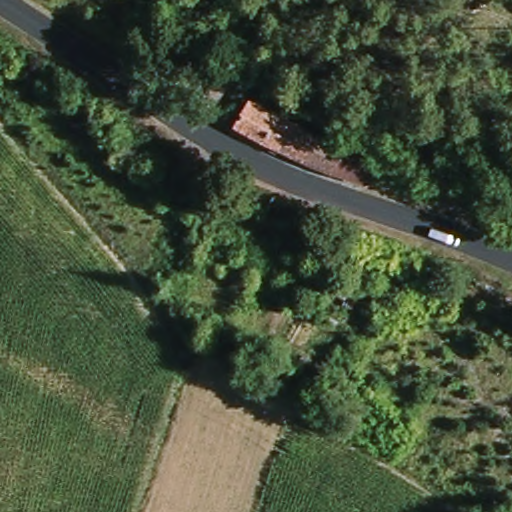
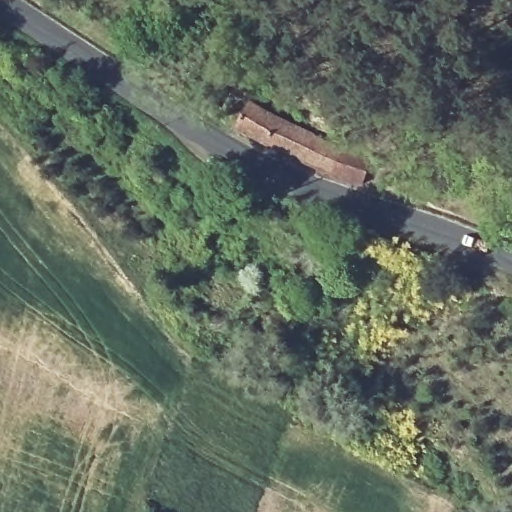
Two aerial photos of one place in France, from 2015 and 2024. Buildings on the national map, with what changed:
unchanged [(240,124),(251,105),(360,159),(361,176),(359,183),(329,177),(277,152),(236,131),(240,124)]

